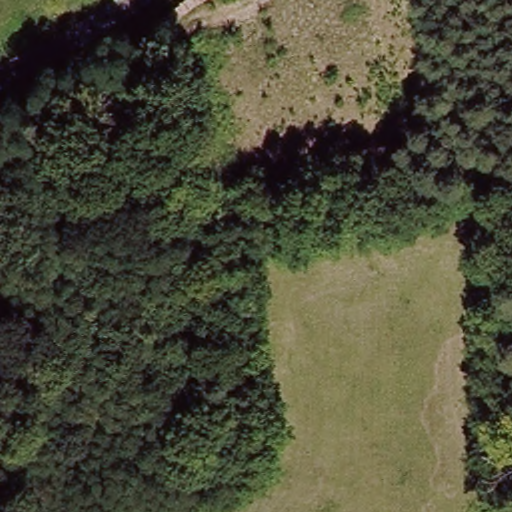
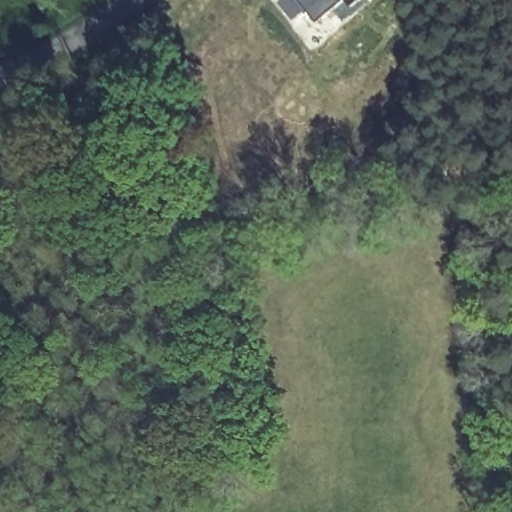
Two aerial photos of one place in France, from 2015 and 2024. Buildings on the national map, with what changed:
new [(352,10),(346,2),(319,26),(305,10),(294,20),(283,6),(290,0),(364,0),(352,10)]

